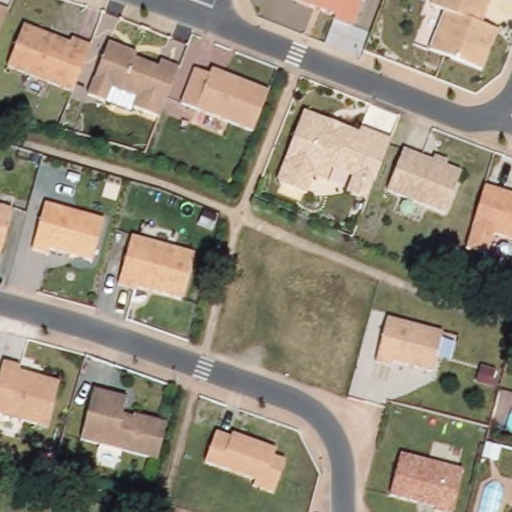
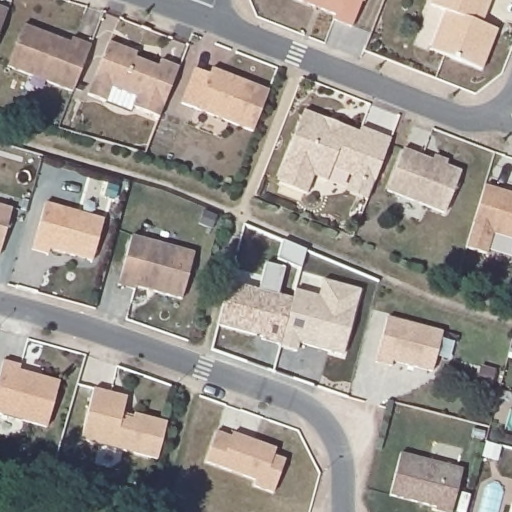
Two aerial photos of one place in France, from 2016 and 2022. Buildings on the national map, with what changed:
unchanged [(13,5),(0,39),(0,0),(13,5)]
unchanged [(363,0),(353,26),(335,19),(337,14),(299,0),(363,0)]
unchanged [(498,30),(482,69),(431,49),(446,10),(432,5),(433,0),(491,0),(482,24),(498,30)]
unchanged [(78,87),(13,61),(29,20),(76,38),(78,33),(96,40),(78,87)]
unchanged [(144,51),(141,56),(161,64),(164,59),(183,67),(163,115),(137,105),(140,96),(116,88),(110,104),(89,94),(111,37),(144,51)]
unchanged [(254,132),(182,104),(196,67),(210,72),(212,67),(269,89),(254,132)]
unchanged [(368,200),(347,192),(353,176),(332,168),(327,181),(314,176),(307,194),(280,184),(278,179),(304,111),(324,118),(346,127),(360,132),(362,128),(391,139),(374,184),(370,193),(368,200)]
unchanged [(461,171),(445,213),(387,190),(404,149),(461,171)]
unchanged [(512,239),(493,233),(487,254),(466,248),(485,185),(512,194),(512,239)]
unchanged [(93,260),(50,249),(49,253),(33,249),(45,203),(104,218),(93,260)]
unchanged [(0,253),(0,205),(13,208),(0,253)]
unchanged [(132,236),(195,253),(182,299),(136,286),(135,290),(118,285),(132,236)]
new [(263,340),(263,337),(218,325),(230,282),(259,289),(266,263),(285,268),(278,295),(293,299),(281,344),(263,340)]
new [(296,287),(318,292),(322,278),(359,287),(342,349),(298,340),(295,349),(281,344),(293,299),(296,287)]
unchanged [(388,317),(443,332),(433,371),(394,361),(392,366),(376,362),(388,317)]
unchanged [(20,366),(19,370),(60,382),(47,427),(0,415),(0,374),(4,361),(20,366)]
unchanged [(127,397),(122,416),(133,419),(135,414),(167,422),(157,459),(81,440),(94,389),(127,397)]
unchanged [(221,431),(236,437),(238,433),(281,449),(279,456),(291,460),(279,493),(259,485),(260,480),(210,462),(221,431)]
unchanged [(399,452),(461,468),(450,512),(448,512),(435,509),(436,506),(389,494),(399,452)]

